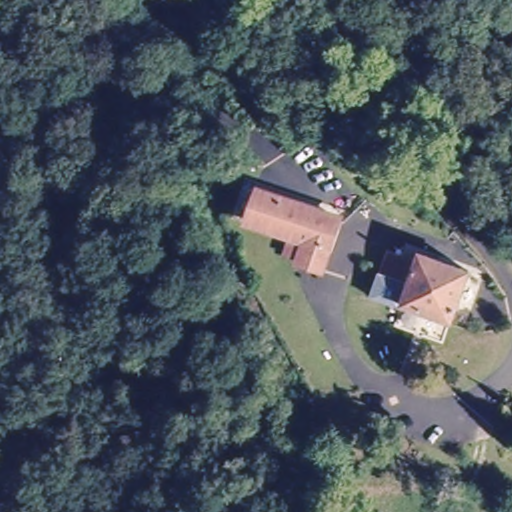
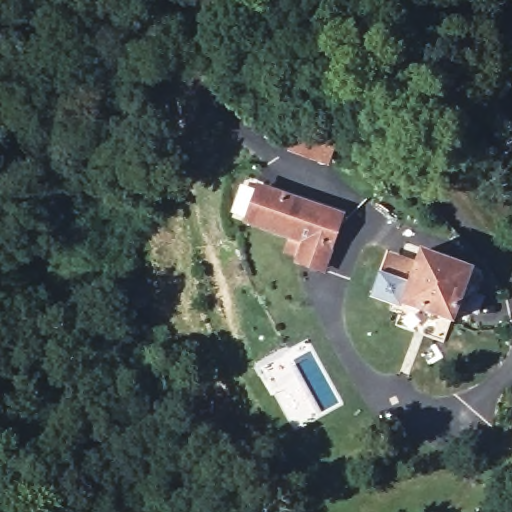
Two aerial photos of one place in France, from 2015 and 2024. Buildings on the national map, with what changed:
unchanged [(292,225),(247,210),(257,182),(339,210),(321,261),(298,252),(300,246),(286,241),(292,225)]
unchanged [(396,257),(420,266),(424,253),(474,272),(456,322),(406,304),(407,301),(399,298),(397,304),(374,296),(384,271),(390,273),(396,257)]

